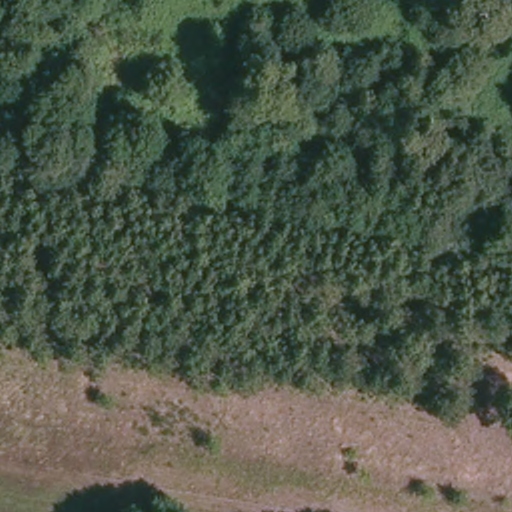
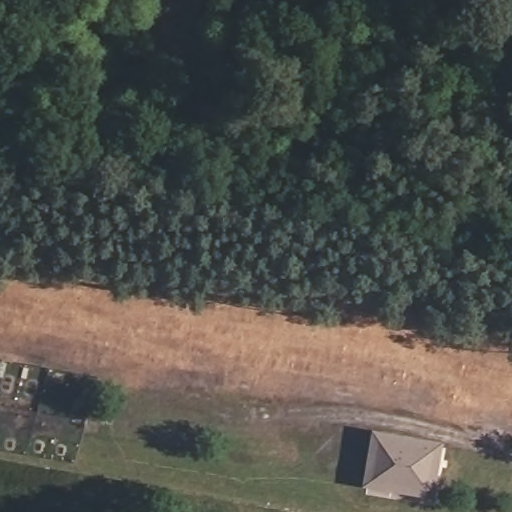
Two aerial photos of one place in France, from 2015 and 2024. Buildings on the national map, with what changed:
new [(406,485),(405,493),(363,484),(371,430),(436,443),(442,452),(437,480),(427,489),(406,485)]

